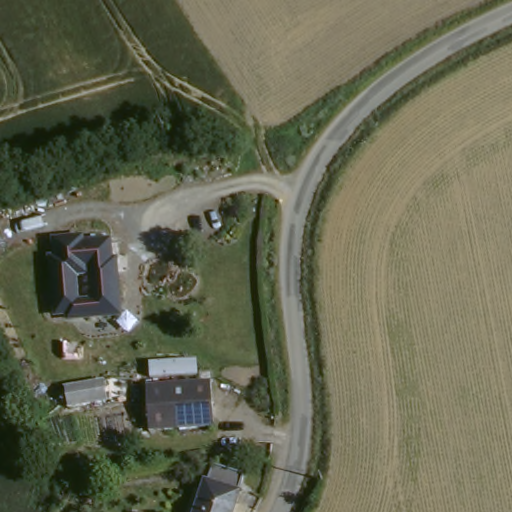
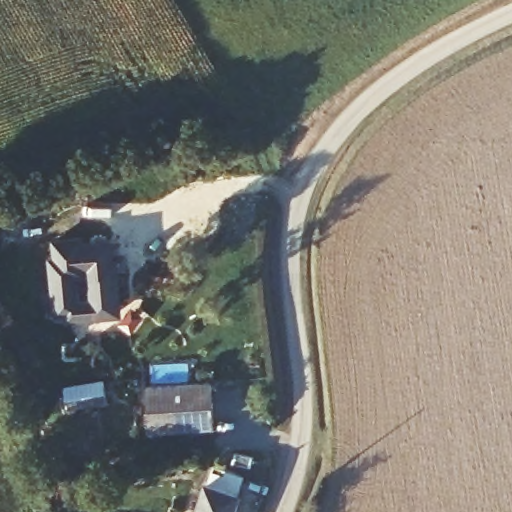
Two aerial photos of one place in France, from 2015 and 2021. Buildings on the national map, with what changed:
unchanged [(52,256),(51,237),(86,235),(86,240),(113,239),(113,259),(118,259),(122,316),(69,320),(69,315),(55,317),(47,255),(52,256)]
unchanged [(143,389),(205,382),(210,431),(146,436),(143,389)]
unchanged [(243,477),(235,512),(194,512),(204,467),(243,477)]

